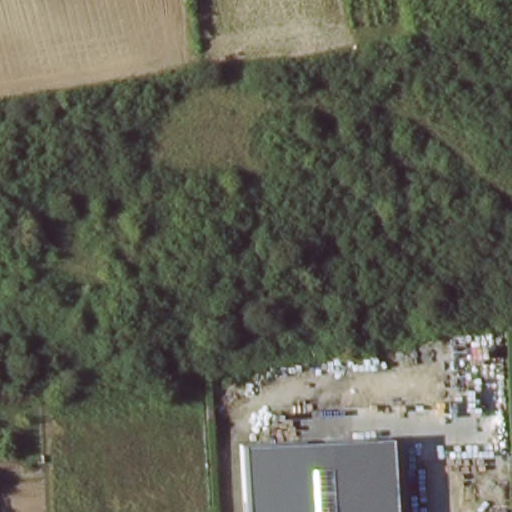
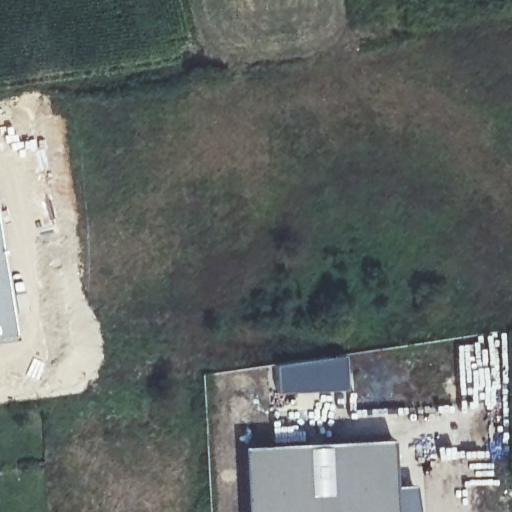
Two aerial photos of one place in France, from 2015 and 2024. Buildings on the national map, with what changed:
new [(13,334),(0,336),(0,236),(9,295),(13,334)]
new [(276,360),(342,357),(344,385),(277,388),(276,360)]
unchanged [(392,512),(239,512),(236,446),(388,438),(392,512)]

